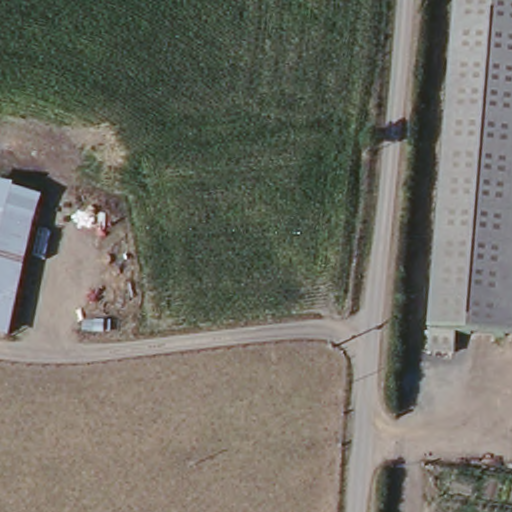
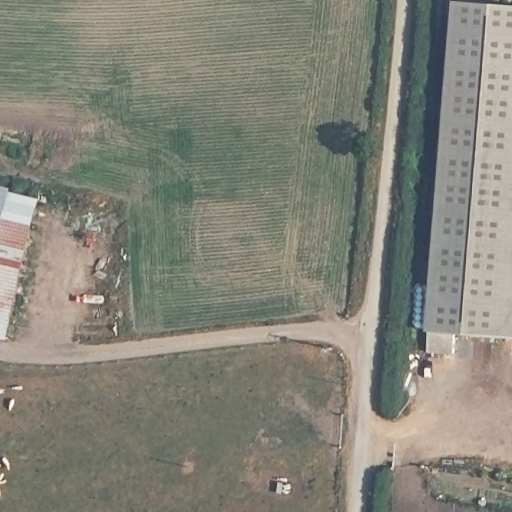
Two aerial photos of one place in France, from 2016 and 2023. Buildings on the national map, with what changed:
unchanged [(512,3),(512,334),(456,332),(455,349),(428,348),(457,0),(465,0),(512,3)]
unchanged [(0,185),(47,197),(14,339),(0,336),(0,185)]

